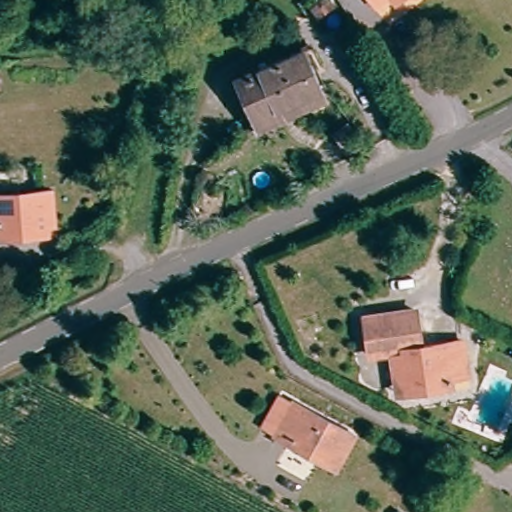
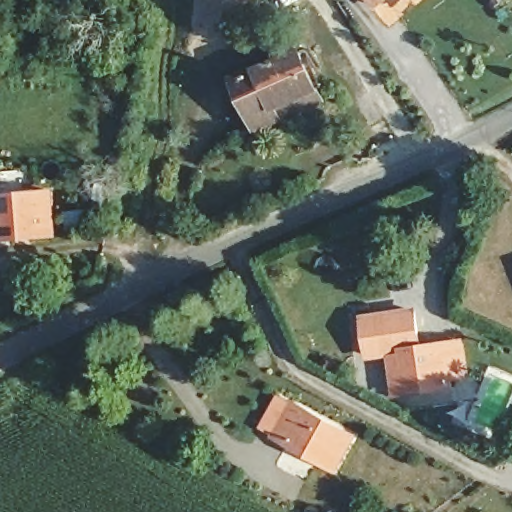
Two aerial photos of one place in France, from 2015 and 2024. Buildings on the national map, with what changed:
unchanged [(377,4),(374,0),(381,0),(377,4)]
unchanged [(397,1),(396,0),(398,0),(397,1)]
unchanged [(278,111),(282,120),(260,129),(240,81),(305,54),(321,92),(278,111)]
unchanged [(30,87),(0,88),(0,74),(29,72),(30,87)]
unchanged [(54,238),(31,238),(31,232),(0,233),(0,192),(53,191),(54,238)]
unchanged [(398,347),(383,350),(375,312),(424,302),(432,340),(470,332),(477,368),(463,372),(464,377),(419,386),(406,388),(398,347)]
unchanged [(347,469),(335,462),(337,457),(303,440),(301,444),(288,437),(274,430),(291,397),(304,403),(364,435),(347,469)]

